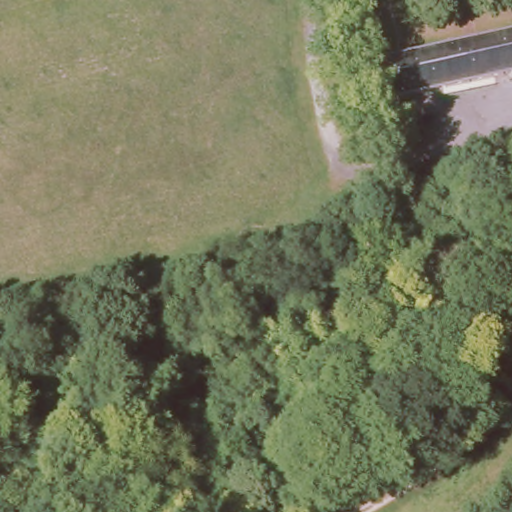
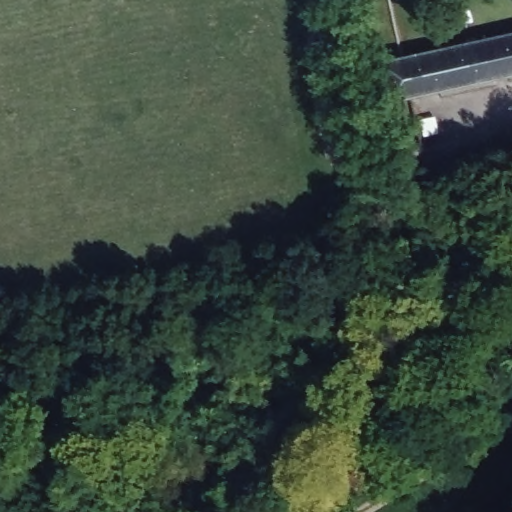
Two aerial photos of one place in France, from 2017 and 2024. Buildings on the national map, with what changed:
unchanged [(512,31),(512,74),(414,95),(391,99),(382,58),(404,54),(512,31)]

